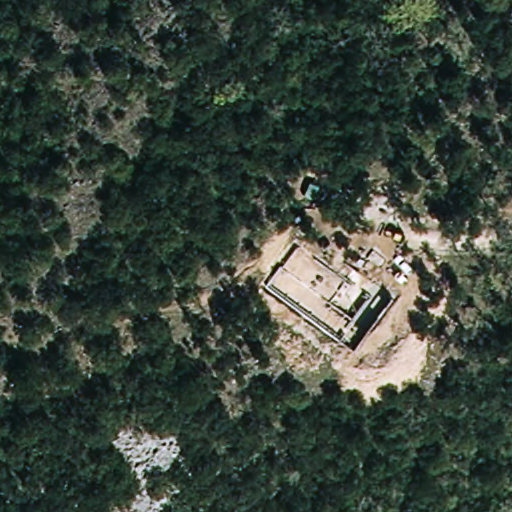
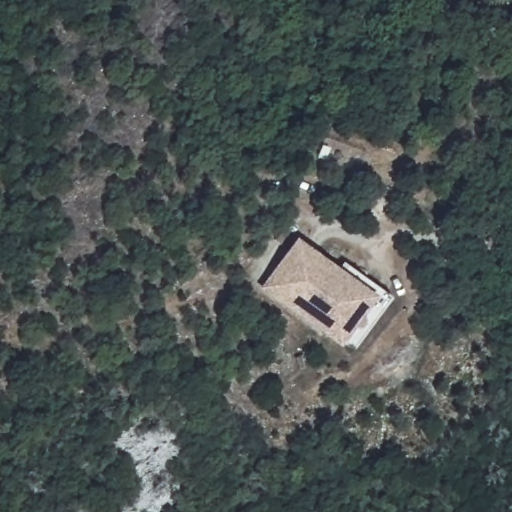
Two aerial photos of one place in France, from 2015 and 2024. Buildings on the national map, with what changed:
new [(353,352),(341,346),(259,289),(296,237),(339,268),(343,261),(392,297),(353,352)]

